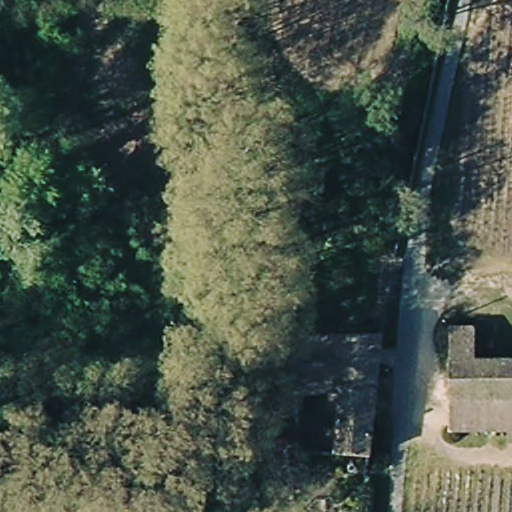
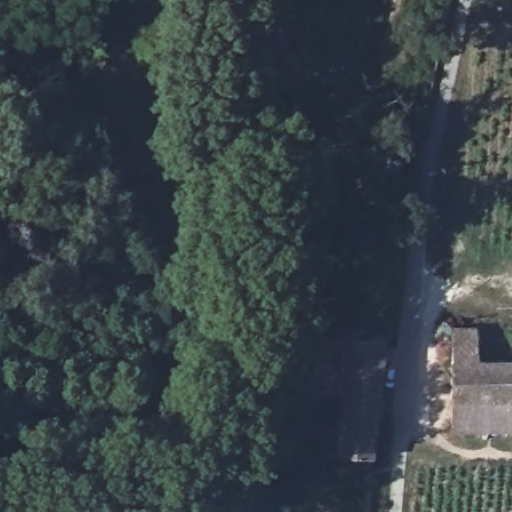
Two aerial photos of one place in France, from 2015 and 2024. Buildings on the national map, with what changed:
unchanged [(458,326),(484,327),(485,357),(512,358),(512,398),(455,397),(458,326)]
unchanged [(340,424),(343,392),(301,390),(300,333),(389,335),(376,470),(348,468),(347,451),(339,450),(340,424)]
unchanged [(512,398),(512,432),(455,430),(455,397),(512,398)]

